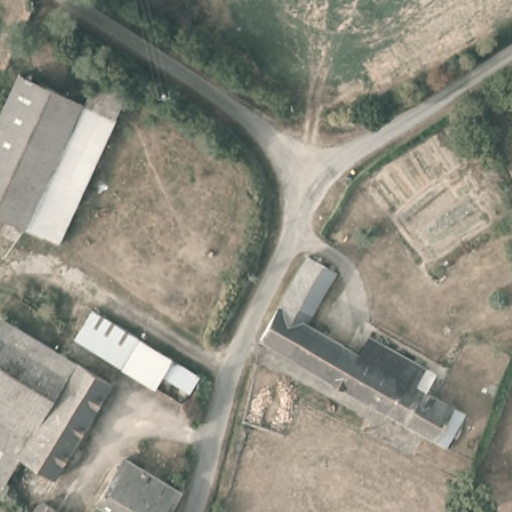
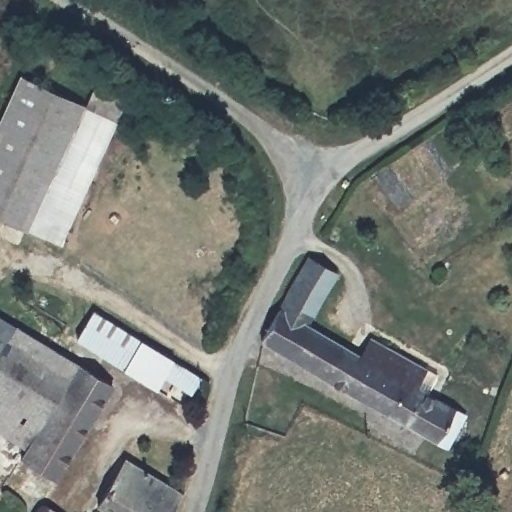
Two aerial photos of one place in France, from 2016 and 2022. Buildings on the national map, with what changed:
unchanged [(88,105),(101,73),(131,88),(60,244),(0,217),(0,124),(22,76),(88,105)]
unchanged [(307,256),(337,272),(309,322),(360,351),(370,336),(436,372),(428,392),(467,411),(449,445),(260,337),(307,256)]
unchanged [(102,309),(205,374),(196,390),(169,374),(162,386),(83,337),(102,309)]
unchanged [(21,456),(5,484),(0,481),(0,315),(78,360),(21,456)]
unchanged [(115,381),(57,476),(21,456),(78,360),(115,381)]
unchanged [(182,491),(169,512),(115,512),(99,503),(127,458),(182,491)]
unchanged [(43,500),(65,512),(35,512),(43,500)]

